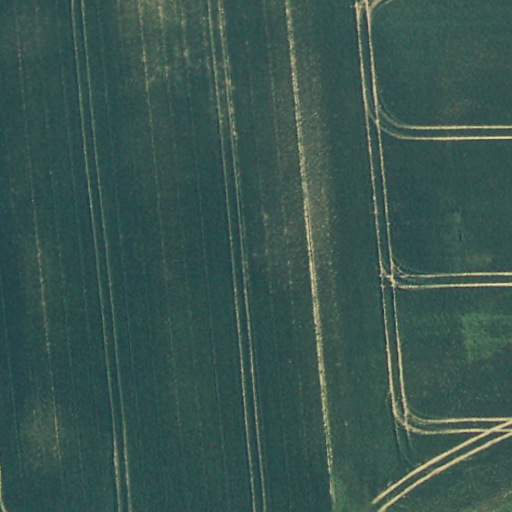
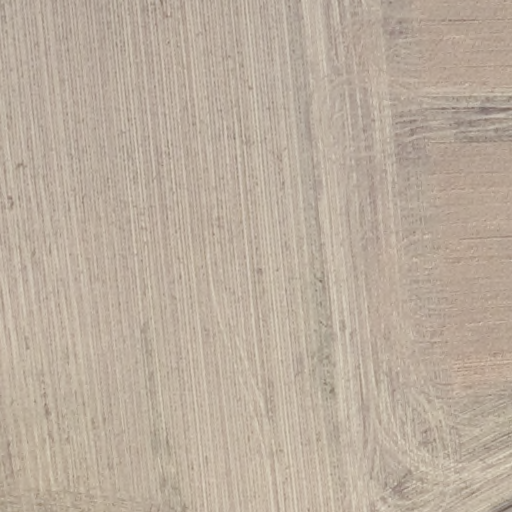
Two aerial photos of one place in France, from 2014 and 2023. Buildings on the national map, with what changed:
[]

